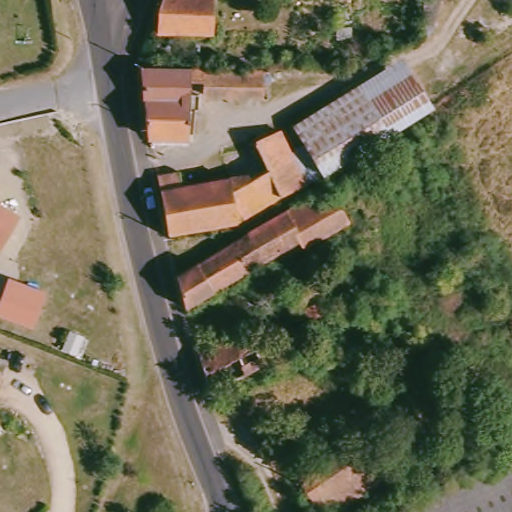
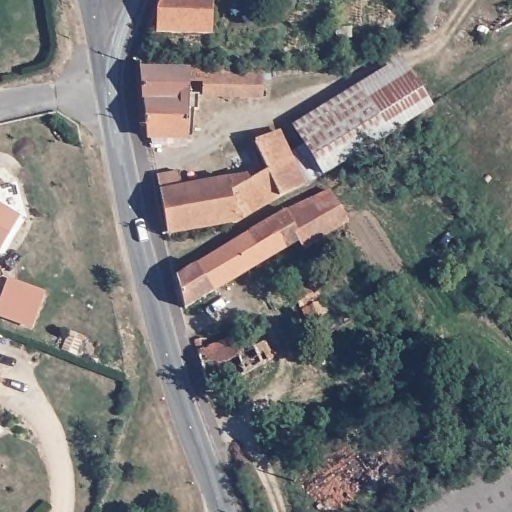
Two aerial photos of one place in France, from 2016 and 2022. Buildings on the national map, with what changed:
unchanged [(153,33),(154,0),(208,0),(207,33),(153,33)]
unchanged [(409,18),(414,0),(441,0),(434,22),(409,18)]
unchanged [(263,55),(263,81),(195,83),(194,57),(263,55)]
unchanged [(142,138),(141,131),(131,60),(179,58),(180,128),(180,135),(142,138)]
unchanged [(423,108),(389,130),(320,170),(289,120),(392,58),(403,75),(423,108)]
unchanged [(245,169),(248,175),(268,164),(256,142),(288,125),(317,172),(284,191),(263,204),(236,219),(224,177),(245,169)]
unchanged [(236,219),(165,239),(154,179),(178,174),(183,186),(224,177),(236,219)]
unchanged [(298,236),(282,207),(309,190),(323,181),(343,215),(328,224),(300,239),(298,236)]
unchanged [(22,215),(2,248),(0,248),(0,202),(22,215)]
unchanged [(183,303),(173,274),(282,207),(298,236),(183,303)]
unchanged [(46,293),(32,328),(0,317),(0,300),(8,279),(46,293)]
unchanged [(295,290),(299,296),(316,288),(321,298),(305,307),(299,297),(286,304),(282,298),(295,290)]
unchanged [(324,304),(329,312),(311,321),(306,313),(324,304)]
unchanged [(194,330),(202,342),(239,324),(249,338),(258,333),(269,354),(261,359),(205,389),(205,388),(204,387),(186,334),(194,330)]
unchanged [(2,376),(0,382),(0,375),(2,376)]
unchanged [(348,430),(358,450),(389,432),(408,482),(394,492),(385,475),(329,512),(314,512),(291,467),(348,430)]
unchanged [(512,484),(512,512),(413,512),(407,499),(498,454),(512,484)]

